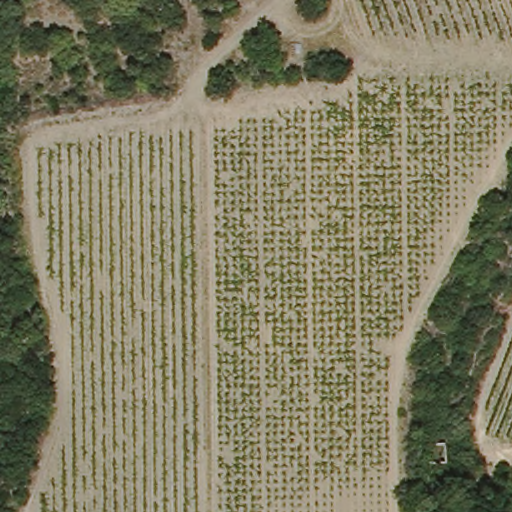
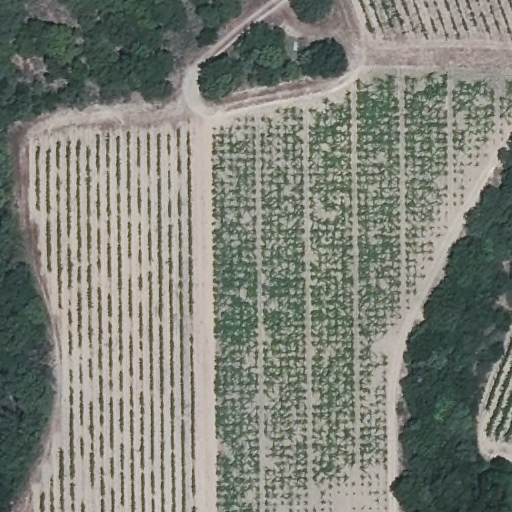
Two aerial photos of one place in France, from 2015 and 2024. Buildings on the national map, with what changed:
unchanged [(443,436),(440,455),(427,454),(428,434),(443,436)]

